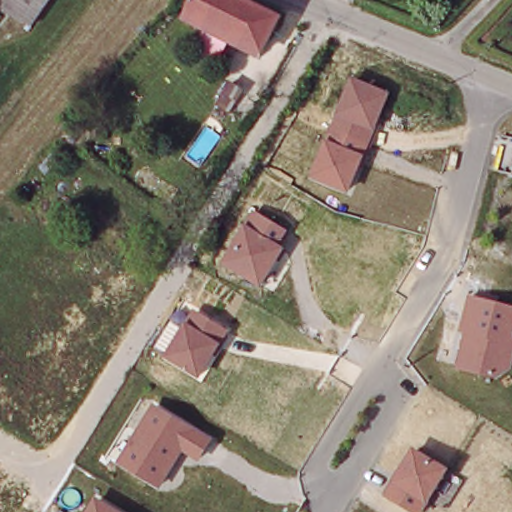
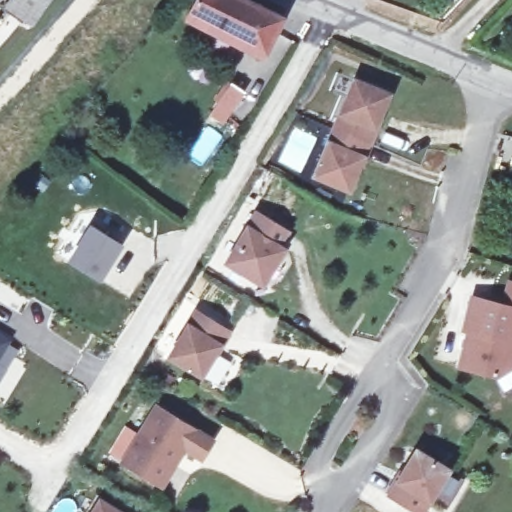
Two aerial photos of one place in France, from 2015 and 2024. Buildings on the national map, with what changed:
unchanged [(0,6),(0,4),(4,0),(45,0),(24,25),(5,11),(0,6)]
unchanged [(274,19),(253,59),(241,53),(244,47),(187,14),(195,0),(240,0),(274,19)]
unchanged [(392,93),(372,144),(332,129),(352,78),(392,93)]
unchanged [(235,91),(222,113),(210,105),(222,83),(235,91)]
unchanged [(370,143),(365,156),(350,193),(310,179),(332,129),(370,143)]
unchanged [(288,229),(280,246),(285,249),(261,288),(221,266),(253,212),(288,229)]
new [(100,280),(67,259),(88,224),(122,245),(100,280)]
unchanged [(512,364),(510,369),(497,380),(456,370),(463,335),(458,334),(468,295),(512,305),(512,364)]
unchanged [(232,332),(225,343),(200,378),(166,357),(188,323),(197,311),(232,332)]
new [(10,339),(0,356),(0,332),(10,339)]
unchanged [(215,439),(200,463),(185,454),(163,488),(122,460),(155,404),(215,439)]
unchanged [(422,512),(413,512),(385,496),(414,449),(449,470),(422,512)]
unchanged [(91,512),(102,496),(127,512),(91,512)]

